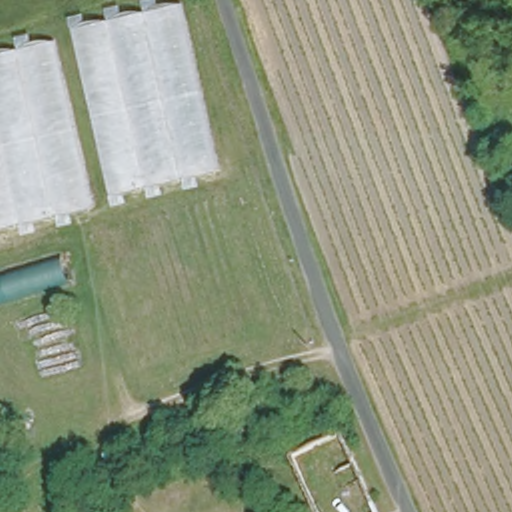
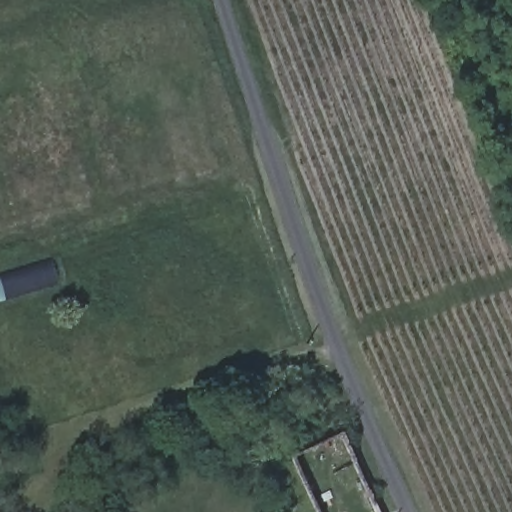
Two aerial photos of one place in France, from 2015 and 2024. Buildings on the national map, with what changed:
demolished [(181,6),(219,171),(111,198),(70,34),(181,6)]
demolished [(0,234),(0,52),(35,40),(86,207),(0,234)]
unchanged [(0,301),(0,278),(57,257),(65,279),(0,301)]

